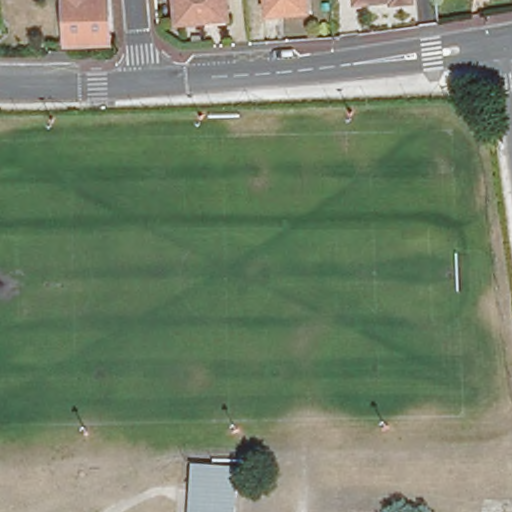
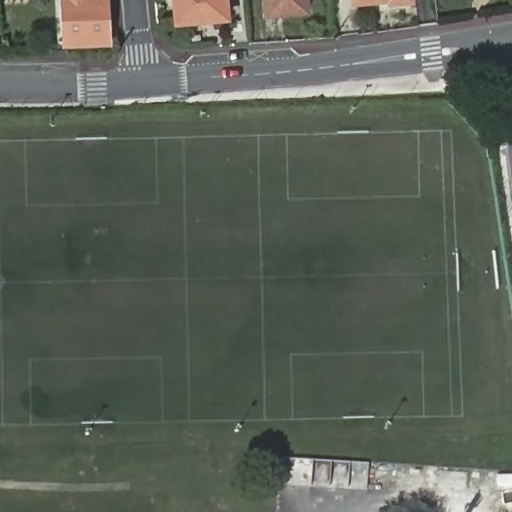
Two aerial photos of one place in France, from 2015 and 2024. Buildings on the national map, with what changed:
unchanged [(68,46),(65,0),(108,0),(110,43),(68,46)]
unchanged [(175,0),(225,0),(226,16),(176,20),(175,0)]
unchanged [(271,0),(310,0),(311,9),(272,12),(271,0)]
unchanged [(354,3),(354,0),(380,0),(354,3)]
unchanged [(392,3),(391,0),(412,0),(392,3)]
demolished [(233,512),(186,512),(189,466),(236,469),(233,512)]

